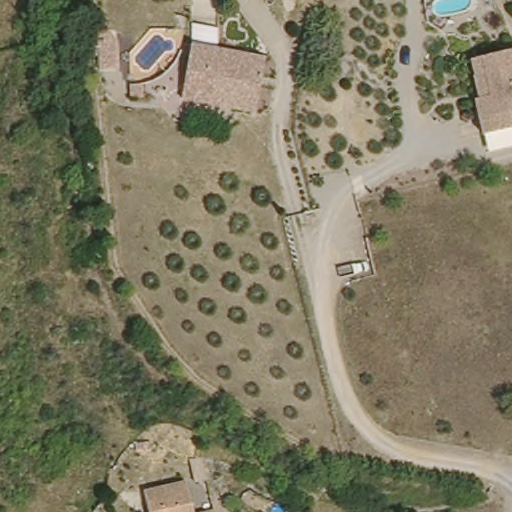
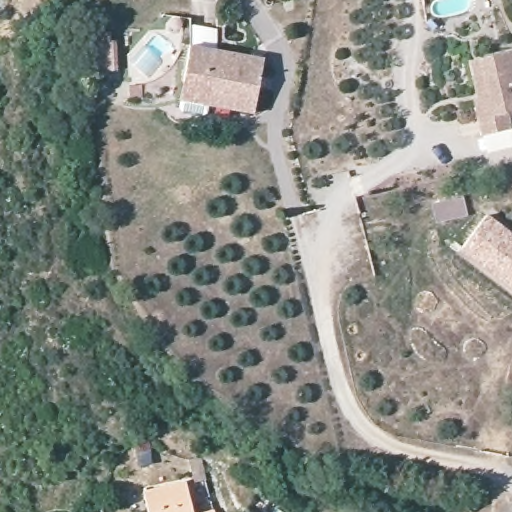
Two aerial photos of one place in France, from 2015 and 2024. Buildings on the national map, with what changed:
unchanged [(116,36),(117,66),(103,67),(102,37),(116,36)]
unchanged [(184,88),(192,51),(265,66),(261,89),(259,96),(254,123),(232,119),(180,108),(184,88)]
unchanged [(507,115),(510,131),(480,136),(474,101),(478,100),(470,61),(482,58),(512,52),(512,114),(507,115)]
new [(460,251),(487,215),(512,234),(512,290),(460,251)]
unchanged [(146,499),(188,491),(191,512),(148,512),(146,499)]

